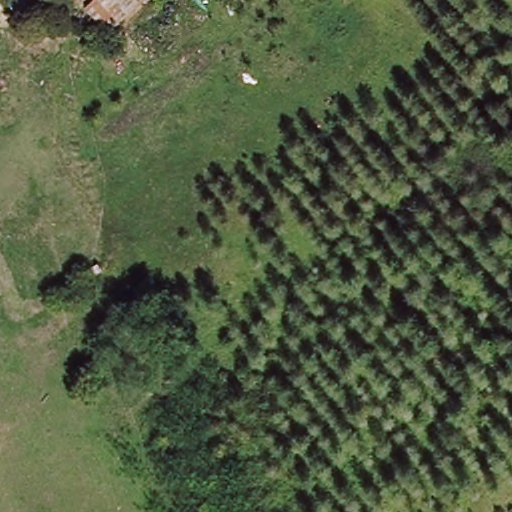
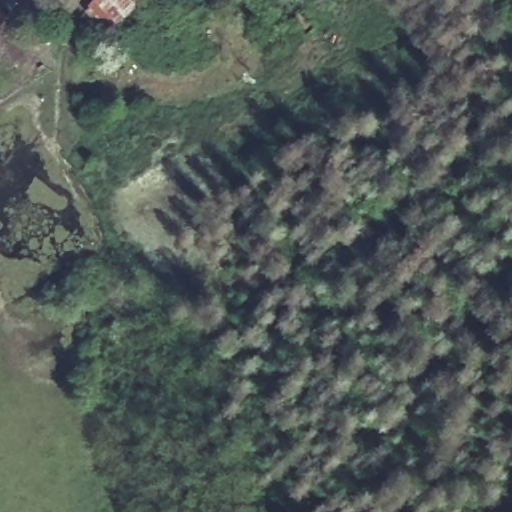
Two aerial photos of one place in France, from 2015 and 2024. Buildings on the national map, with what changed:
unchanged [(110,35),(87,10),(96,0),(146,0),(110,35)]

